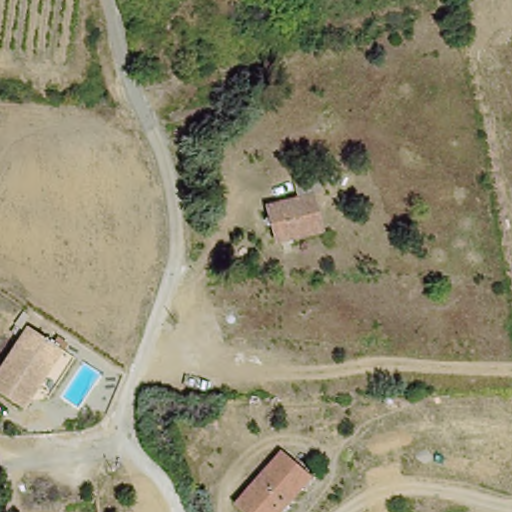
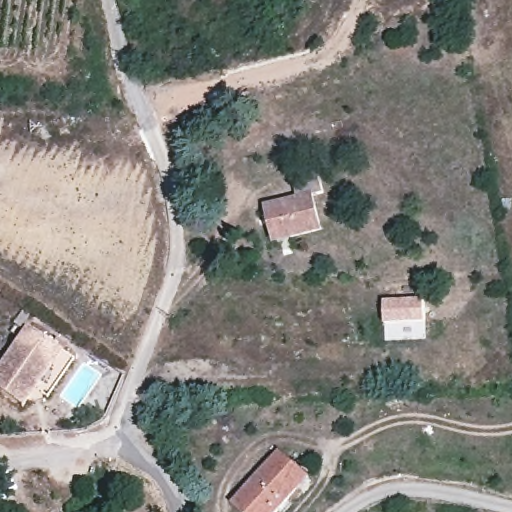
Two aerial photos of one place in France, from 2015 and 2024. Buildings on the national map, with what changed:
unchanged [(278,243),(269,207),(298,199),(293,180),(320,172),(327,191),(312,195),(324,231),(278,243)]
new [(387,295),(427,296),(426,317),(387,317),(387,295)]
unchanged [(17,403),(0,392),(0,368),(25,329),(59,351),(34,389),(22,407),(17,403)]
unchanged [(268,512),(242,512),(230,501),(274,454),(301,478),(268,512)]

